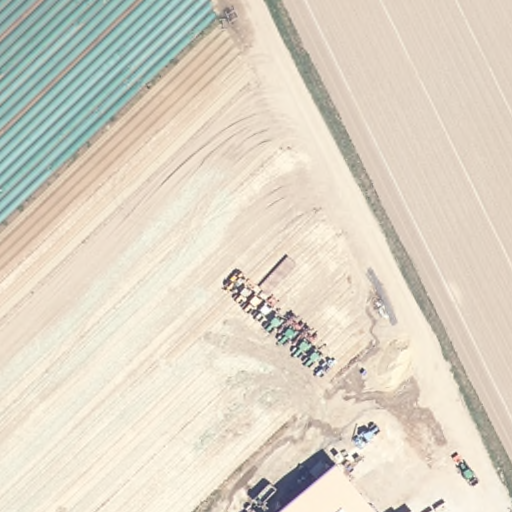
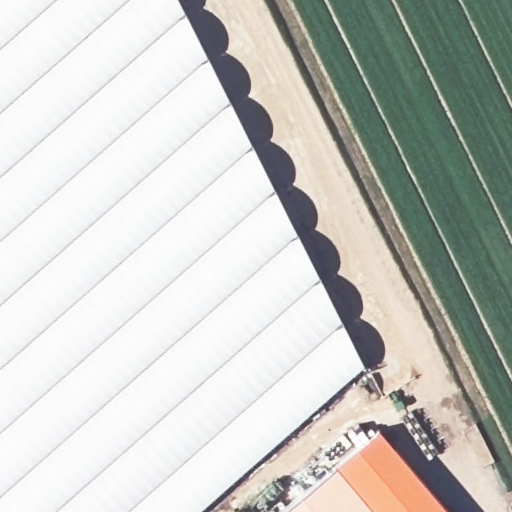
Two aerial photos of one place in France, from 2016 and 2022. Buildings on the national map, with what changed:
new [(0,0),(179,0),(363,363),(194,512),(0,512),(0,0)]
unchanged [(338,465),(375,512),(279,512),(338,465)]

